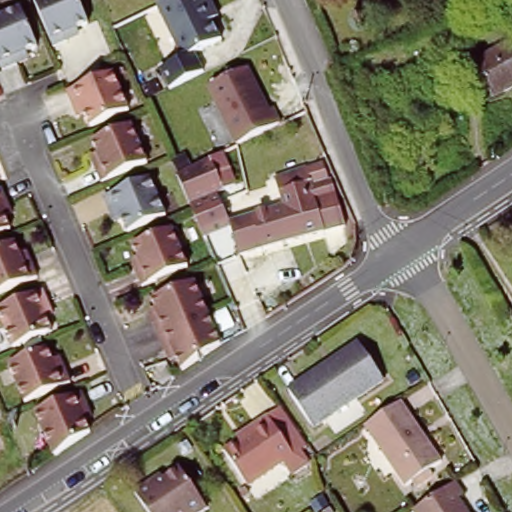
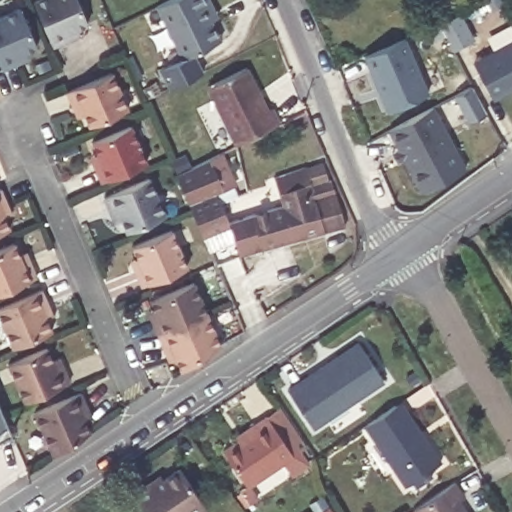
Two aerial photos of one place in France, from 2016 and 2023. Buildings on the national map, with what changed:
unchanged [(62,36),(65,42),(50,49),(31,5),(43,0),(72,0),(83,27),(62,36)]
unchanged [(209,11),(221,37),(182,55),(157,2),(162,0),(212,0),(216,7),(209,11)]
unchanged [(10,54),(13,62),(0,68),(0,15),(17,7),(32,45),(10,54)]
new [(387,111),(365,56),(406,37),(429,92),(387,111)]
unchanged [(512,43),(512,87),(489,99),(470,65),(507,45),(512,43)]
unchanged [(247,72),(268,115),(272,113),(280,128),(237,149),(208,92),(247,72)]
unchanged [(68,95),(114,76),(127,112),(89,129),(81,108),(75,111),(68,95)]
new [(422,191),(391,130),(434,107),(466,169),(422,191)]
unchanged [(94,141),(132,125),(147,162),(101,182),(94,165),(102,162),(94,141)]
unchanged [(177,174),(225,152),(239,181),(213,192),(227,221),(202,234),(177,174)]
unchanged [(279,186),(272,187),(270,179),(309,168),(312,182),(332,177),(334,182),(340,204),(344,226),(244,252),(236,216),(283,204),(279,186)]
unchanged [(160,215),(122,231),(112,209),(106,212),(99,197),(145,177),(160,215)]
unchanged [(6,202),(0,205),(0,187),(1,187),(6,202)]
unchanged [(0,231),(0,206),(10,227),(0,231)]
unchanged [(135,271),(142,267),(132,245),(171,229),(187,266),(141,285),(135,271)]
unchanged [(22,267),(30,265),(37,280),(0,295),(0,251),(13,246),(22,267)]
unchanged [(159,337),(152,320),(159,317),(152,300),(194,282),(207,316),(159,337)]
unchanged [(51,334),(12,350),(0,323),(0,311),(42,293),(49,310),(42,312),(51,334)]
unchanged [(181,372),(172,349),(165,352),(159,337),(207,316),(220,345),(181,372)]
unchanged [(385,382),(313,428),(289,392),(360,345),(385,382)]
unchanged [(59,368),(67,365),(73,381),(27,400),(12,363),(50,347),(59,368)]
unchanged [(84,393),(93,416),(86,418),(92,437),(57,458),(38,412),(84,393)]
unchanged [(406,481),(367,422),(397,402),(402,398),(426,435),(441,458),(406,481)]
unchanged [(310,447),(264,477),(240,442),(255,432),(252,428),(270,417),(282,407),(310,447)]
unchanged [(207,503),(194,512),(151,512),(136,488),(151,478),(161,471),(164,475),(181,463),(207,503)]
unchanged [(459,497),(469,512),(418,512),(414,507),(456,479),(465,493),(459,497)]

